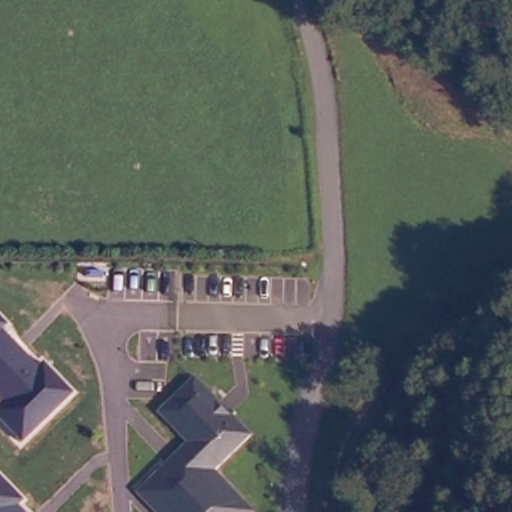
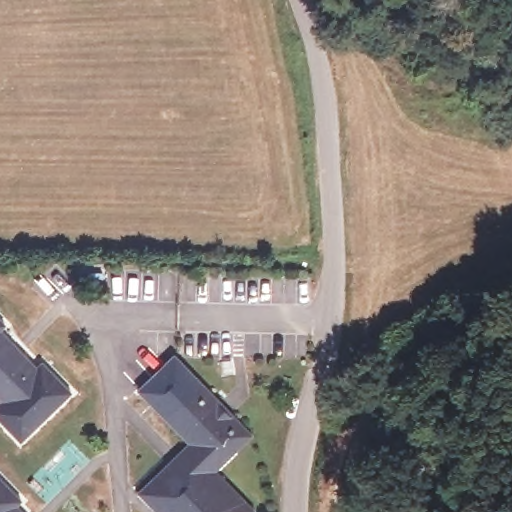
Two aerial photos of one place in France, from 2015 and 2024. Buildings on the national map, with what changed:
unchanged [(0,331),(0,322),(5,327),(0,331)]
unchanged [(41,363),(71,393),(23,443),(0,423),(0,332),(36,368),(41,363)]
unchanged [(160,472),(188,443),(161,414),(198,377),(254,437),(217,472),(247,506),(253,512),(155,512),(138,493),(160,472)]
unchanged [(15,506),(20,512),(0,512),(0,480),(18,501),(15,506)]

